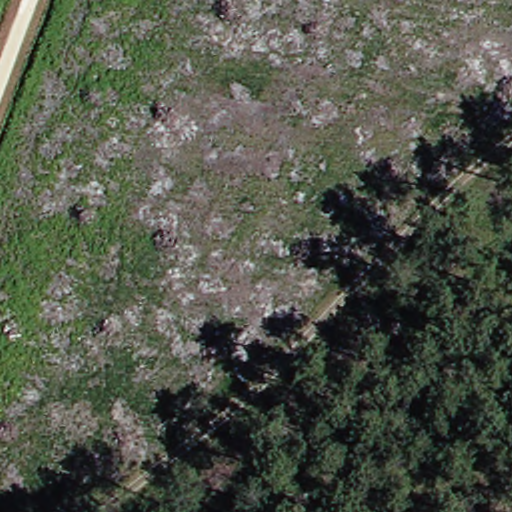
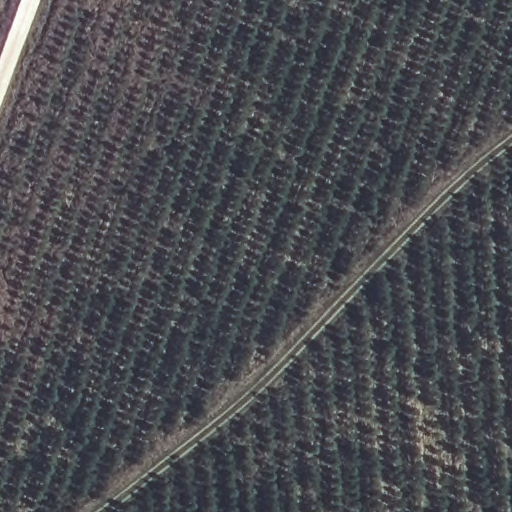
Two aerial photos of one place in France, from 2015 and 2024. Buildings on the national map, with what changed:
[]

